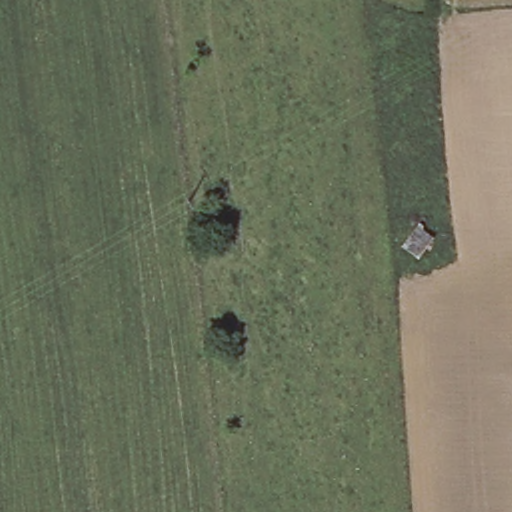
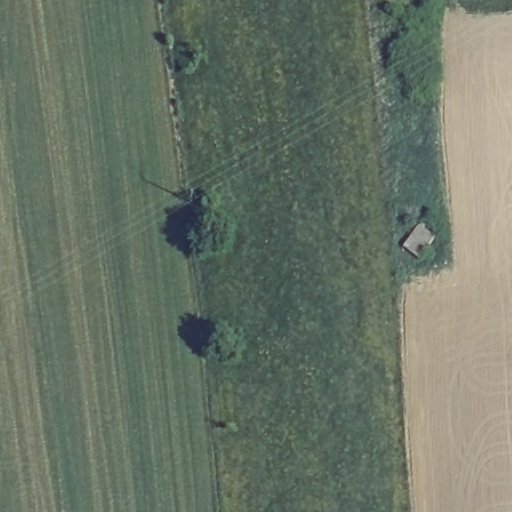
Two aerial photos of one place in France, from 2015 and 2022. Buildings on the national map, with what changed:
unchanged [(398,250),(412,217),(429,225),(440,237),(415,265),(398,250)]

